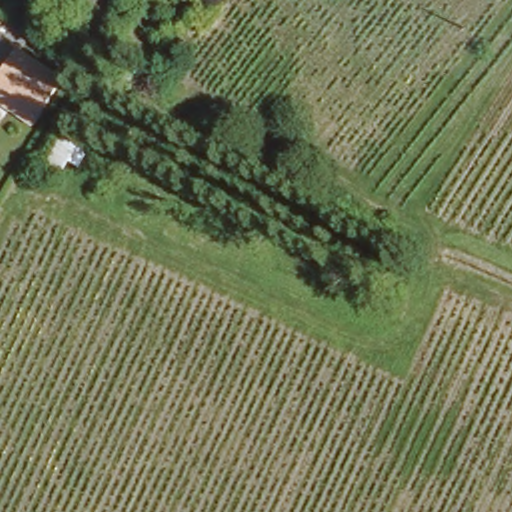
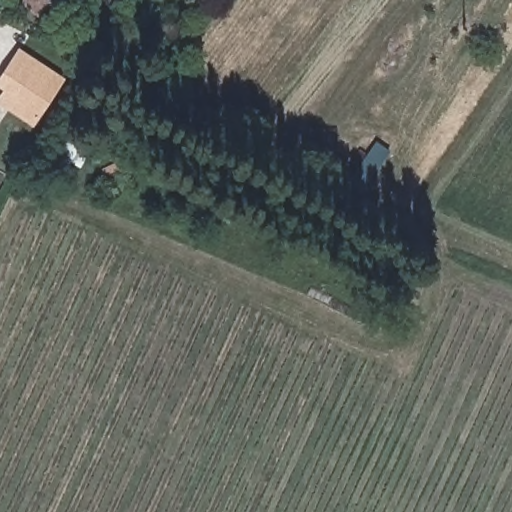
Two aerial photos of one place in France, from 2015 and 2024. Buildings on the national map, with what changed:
new [(0,103),(0,93),(2,89),(0,88),(0,75),(12,56),(61,86),(36,126),(0,103)]
unchanged [(37,174),(61,125),(93,141),(79,168),(66,161),(55,186),(37,174)]

